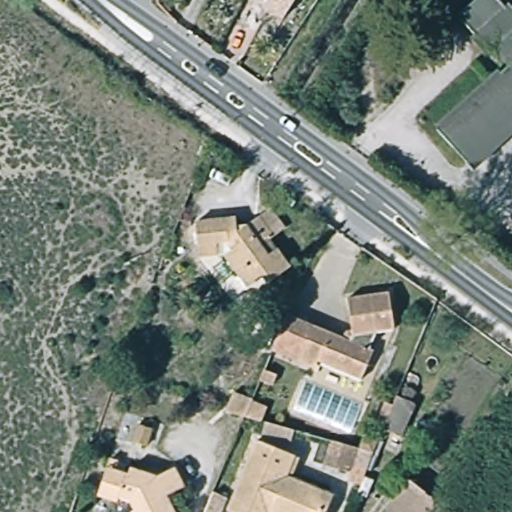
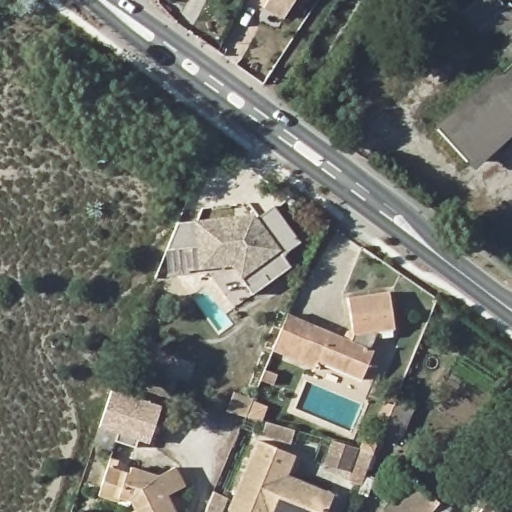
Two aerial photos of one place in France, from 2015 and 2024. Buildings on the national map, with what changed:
unchanged [(264,8),(268,0),(296,0),(284,19),(264,8)]
unchanged [(503,0),(512,10),(512,116),(467,157),(438,126),(509,62),(477,27),(475,29),(461,15),(478,0),(503,0)]
unchanged [(297,202),(293,208),(288,204),(291,198),(297,202)]
unchanged [(269,284),(265,277),(249,289),(224,255),(200,258),(196,222),(236,218),(238,227),(246,226),(260,217),(271,208),(287,228),(275,237),(271,240),(291,268),(269,284)]
unchanged [(379,352),(367,381),(323,362),(320,368),(278,351),(283,339),(286,333),(293,314),(348,338),(350,334),(351,333),(351,332),(353,331),(358,330),(353,299),(395,293),(401,330),(383,333),(376,350),(379,352)]
unchanged [(273,386),(261,381),(266,370),(277,375),(273,386)]
unchanged [(381,414),(386,402),(394,406),(398,396),(402,398),(407,387),(415,391),(411,402),(416,404),(402,437),(384,429),(384,428),(376,425),(381,414)]
new [(117,435),(99,429),(113,391),(161,407),(148,446),(136,442),(134,449),(115,442),(117,435)]
unchanged [(261,422),(246,418),(226,412),(234,393),(253,401),(253,402),(266,408),(261,422)]
demolished [(153,429),(146,447),(135,443),(140,425),(153,429)]
unchanged [(365,435),(380,440),(374,454),(368,470),(354,465),(360,450),(365,435)]
unchanged [(334,512),(235,512),(263,447),(300,462),(293,482),(339,501),(334,512)]
unchanged [(173,496),(180,512),(138,512),(141,511),(136,502),(125,499),(123,503),(103,496),(115,459),(123,462),(121,470),(131,474),(131,473),(135,474),(136,469),(162,477),(181,468),(191,487),(173,496)]
unchanged [(381,504),(388,496),(376,484),(391,465),(444,507),(440,512),(390,512),(381,504)]
unchanged [(228,512),(213,512),(215,508),(220,497),(232,503),(228,512)]
unchanged [(494,512),(481,512),(486,506),(494,512)]

